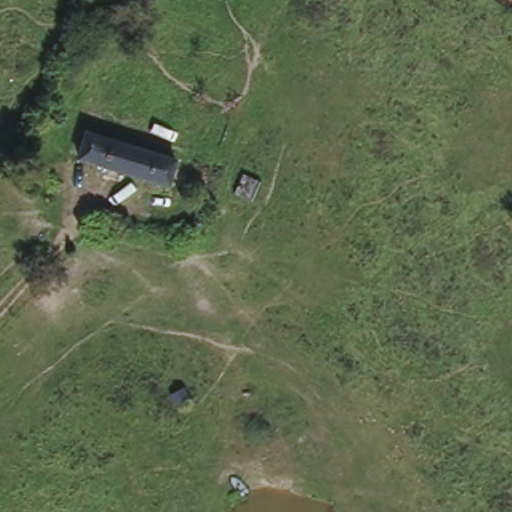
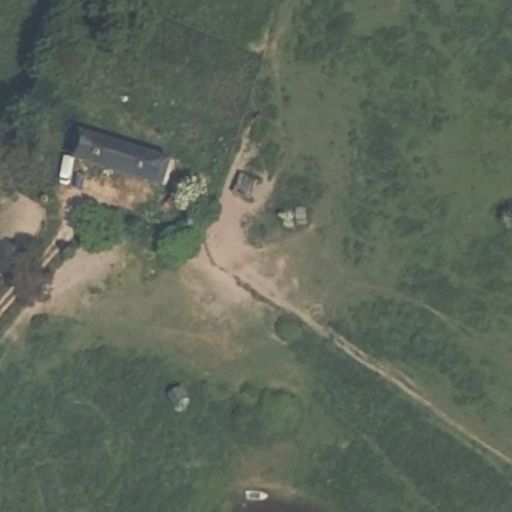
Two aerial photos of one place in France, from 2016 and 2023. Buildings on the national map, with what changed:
unchanged [(105,9),(119,18),(110,31),(96,22),(105,9)]
unchanged [(85,126),(178,155),(167,187),(73,159),(85,126)]
unchanged [(190,401),(178,406),(171,394),(177,392),(183,388),(190,401)]

